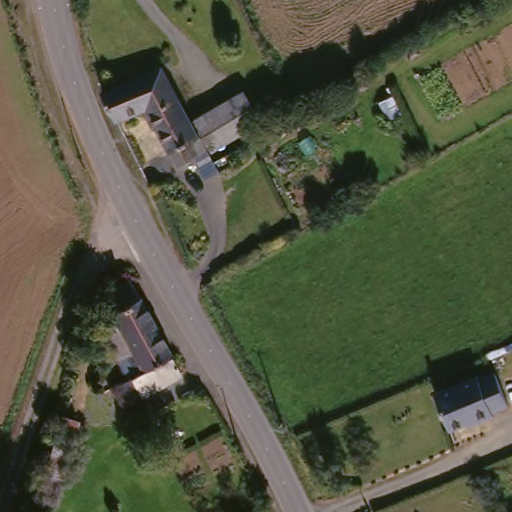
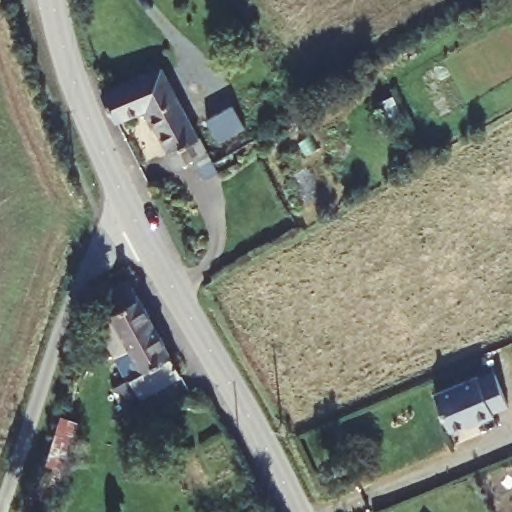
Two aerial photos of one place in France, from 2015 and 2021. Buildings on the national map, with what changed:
unchanged [(148,108),(120,122),(107,91),(165,64),(210,155),(181,170),(148,108)]
unchanged [(248,96),(264,128),(215,152),(199,120),(248,96)]
unchanged [(107,316),(121,309),(112,289),(141,273),(192,371),(135,404),(124,382),(138,375),(107,316)]
unchanged [(492,376),(506,407),(490,414),(492,419),(471,428),(469,423),(448,432),(432,397),(474,379),(476,382),(492,376)]
unchanged [(70,408),(90,414),(82,440),(61,500),(51,495),(46,493),(50,486),(45,483),(56,453),(70,408)]

